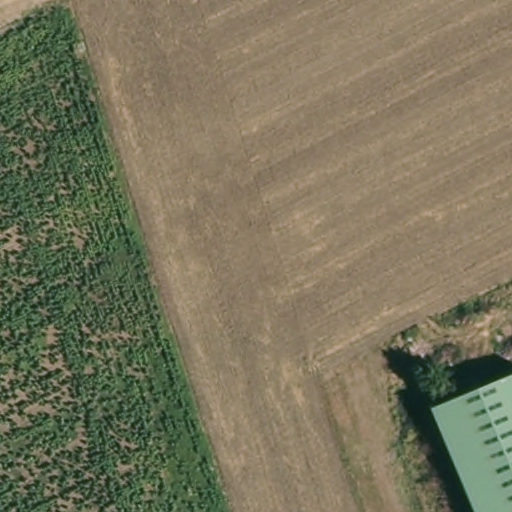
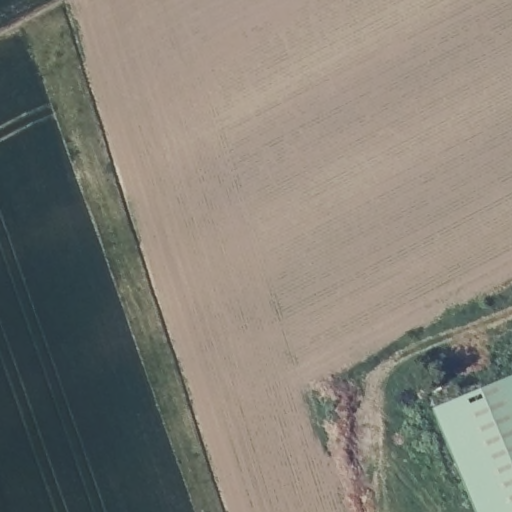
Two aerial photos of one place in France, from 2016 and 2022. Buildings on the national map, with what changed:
unchanged [(432,409),(512,376),(512,512),(474,512),(432,409)]

